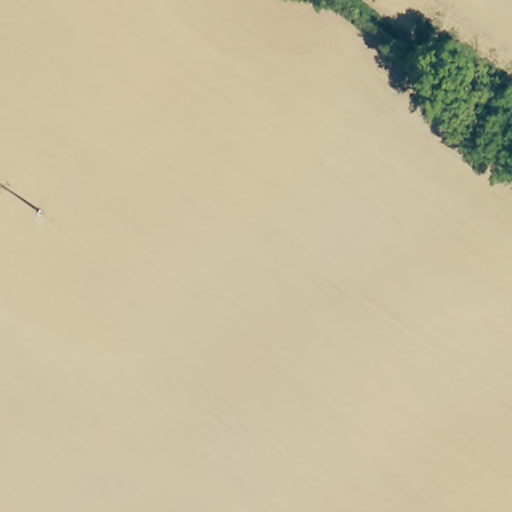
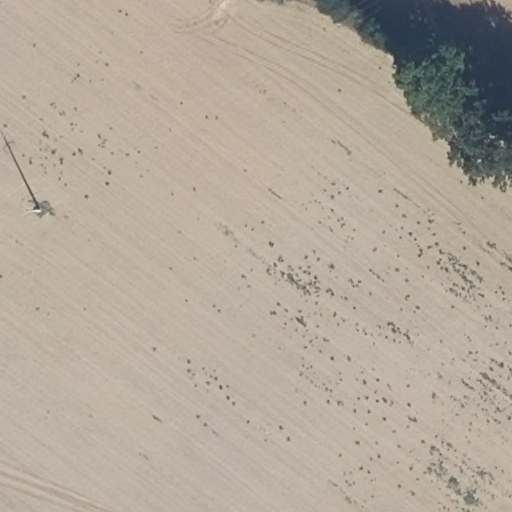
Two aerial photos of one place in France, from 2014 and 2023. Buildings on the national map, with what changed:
[]

